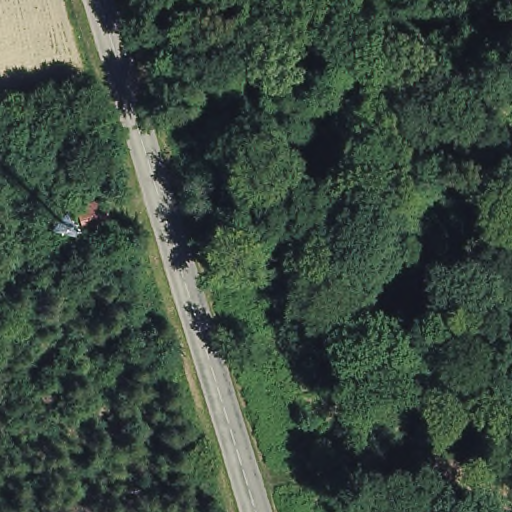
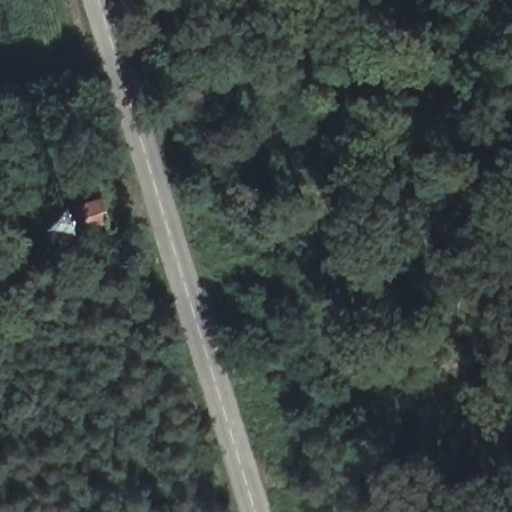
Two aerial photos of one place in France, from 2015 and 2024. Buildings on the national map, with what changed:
unchanged [(110,229),(84,234),(72,203),(100,195),(110,229)]

